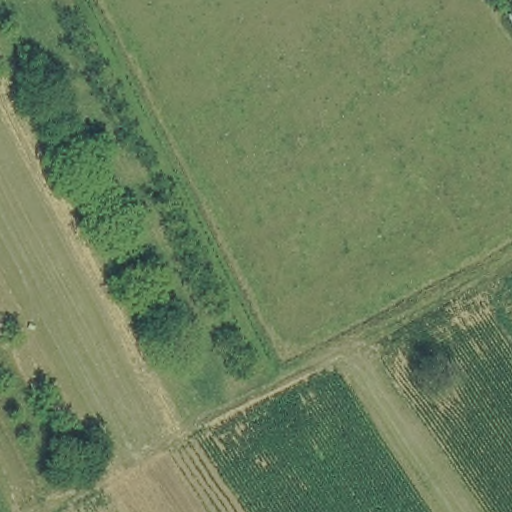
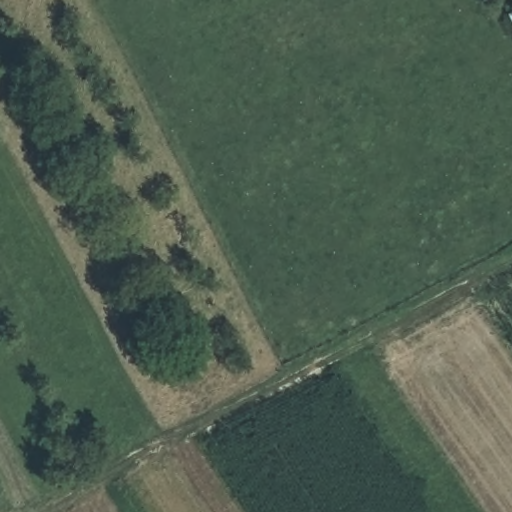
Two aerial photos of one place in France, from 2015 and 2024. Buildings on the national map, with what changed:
unchanged [(512,15),(512,18),(511,15),(512,15)]

